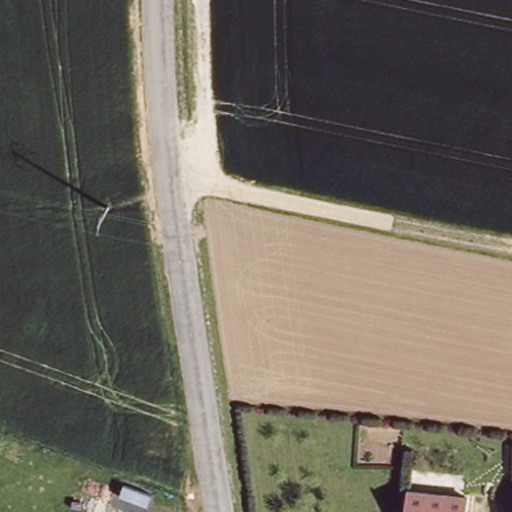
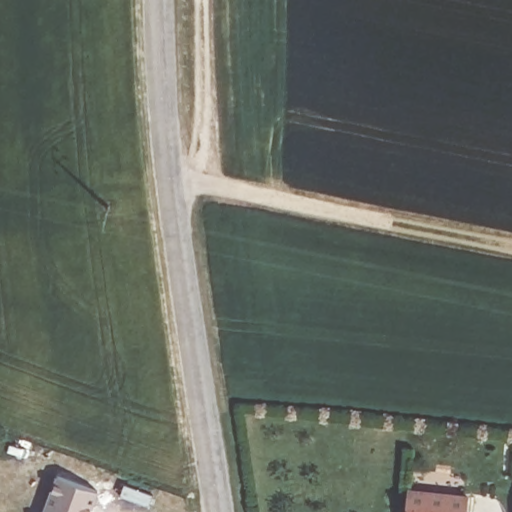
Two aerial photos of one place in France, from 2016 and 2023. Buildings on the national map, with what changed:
new [(99,492),(91,512),(42,512),(55,477),(99,492)]
unchanged [(469,512),(408,512),(411,485),(471,491),(469,512)]

